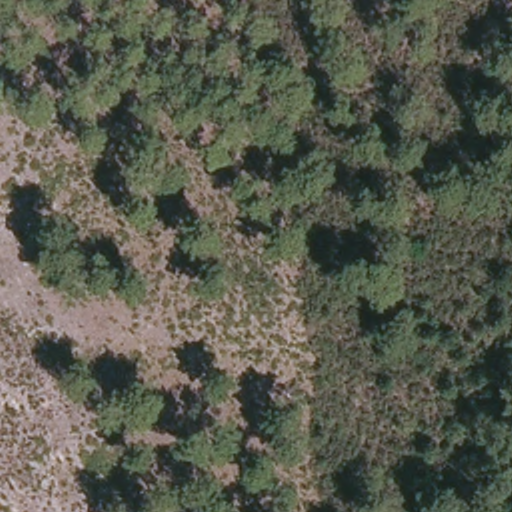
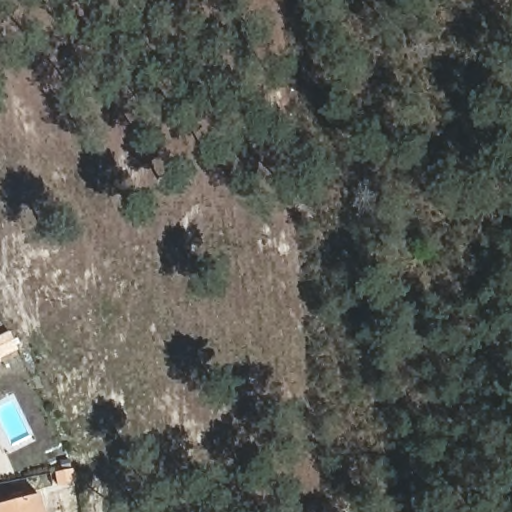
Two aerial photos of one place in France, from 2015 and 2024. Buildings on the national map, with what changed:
new [(54,512),(0,512),(0,503),(49,491),(54,512)]

